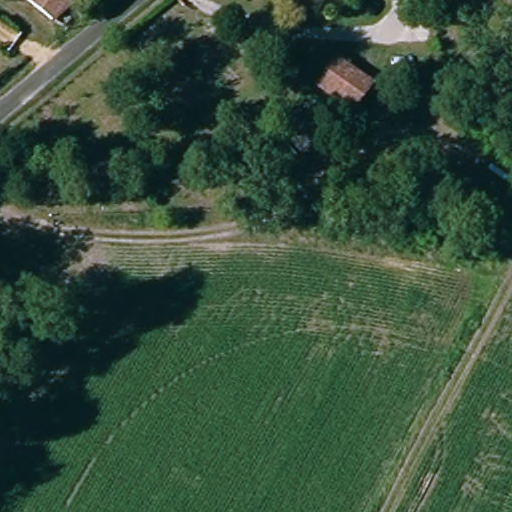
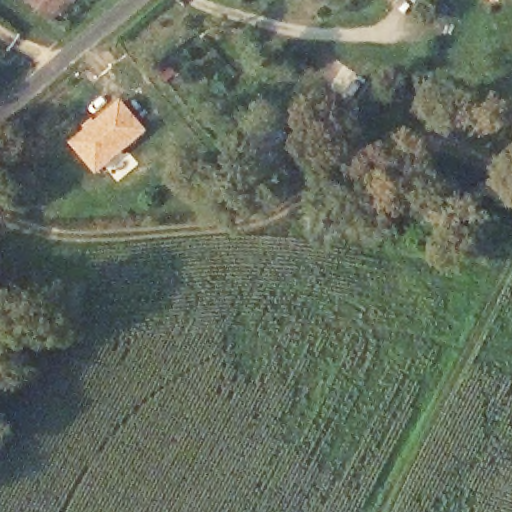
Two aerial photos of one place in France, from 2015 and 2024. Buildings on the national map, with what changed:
unchanged [(62,0),(52,11),(42,0),(62,0)]
new [(492,0),(501,0),(497,4),(492,0)]
unchanged [(332,54),(368,74),(350,105),(314,84),(332,54)]
new [(120,96),(149,131),(97,174),(69,141),(120,96)]

